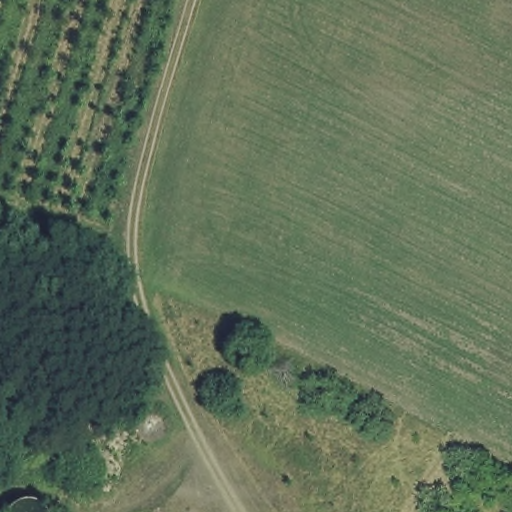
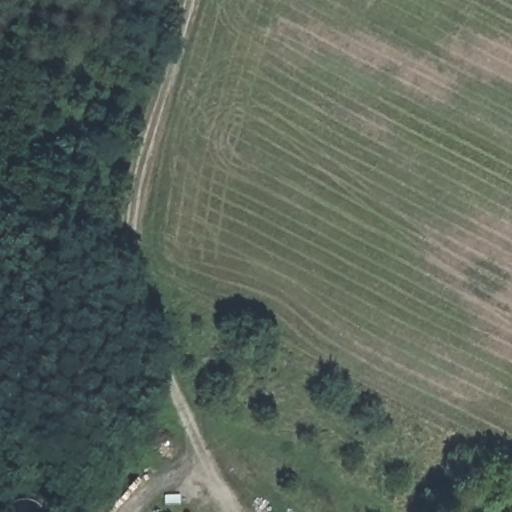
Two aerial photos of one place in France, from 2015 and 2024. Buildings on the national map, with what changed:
unchanged [(37,512),(8,512),(8,510),(23,504),(36,510),(37,512)]

